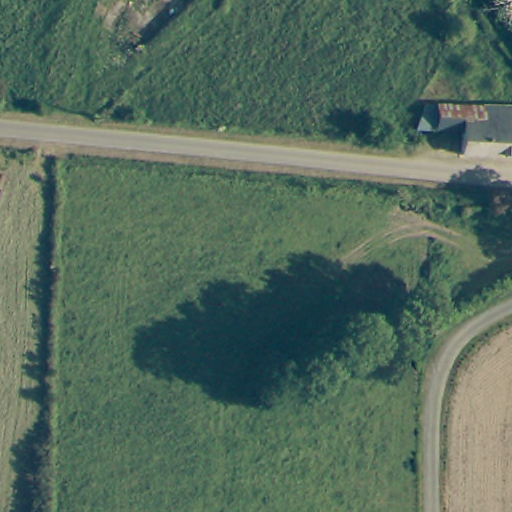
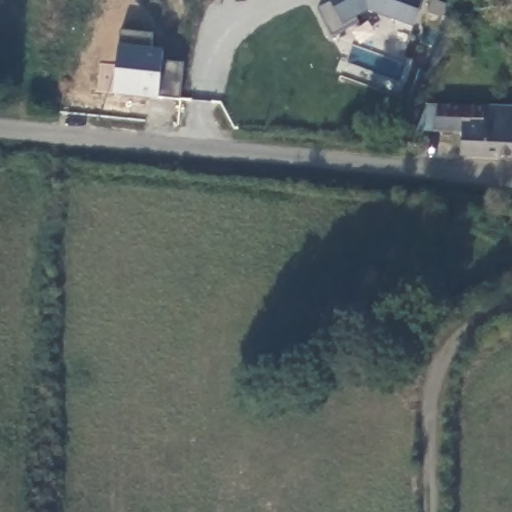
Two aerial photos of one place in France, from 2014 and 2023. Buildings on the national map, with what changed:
new [(367,11),(357,17),(358,23),(331,36),(316,11),(333,6),(329,0),(424,0),(410,28),(367,11)]
new [(119,31),(153,34),(151,51),(163,53),(162,63),(184,65),(180,101),(113,95),(119,31)]
unchanged [(497,156),(481,156),(458,151),(459,131),(432,130),(435,102),(477,104),(512,105),(512,156),(497,156)]

